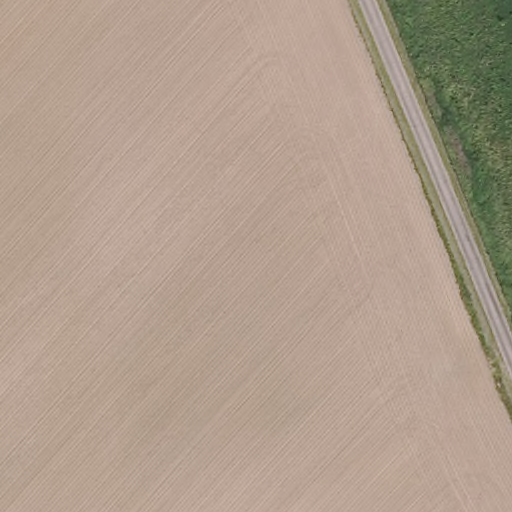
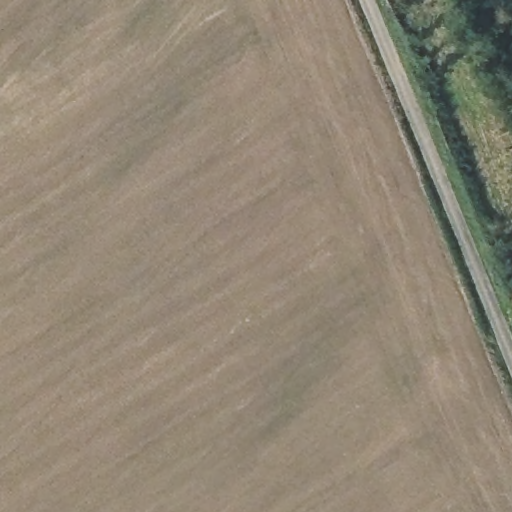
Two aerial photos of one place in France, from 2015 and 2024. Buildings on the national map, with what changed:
[]

